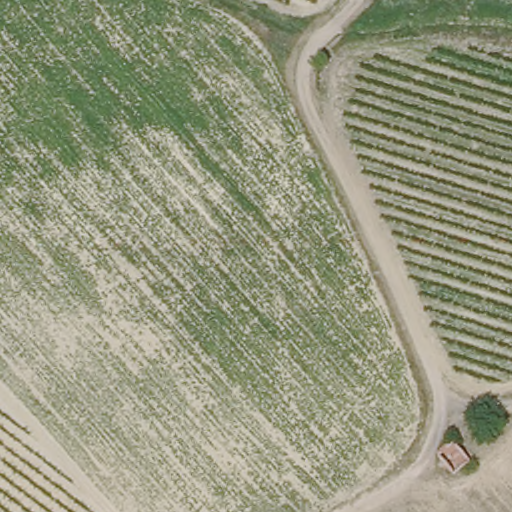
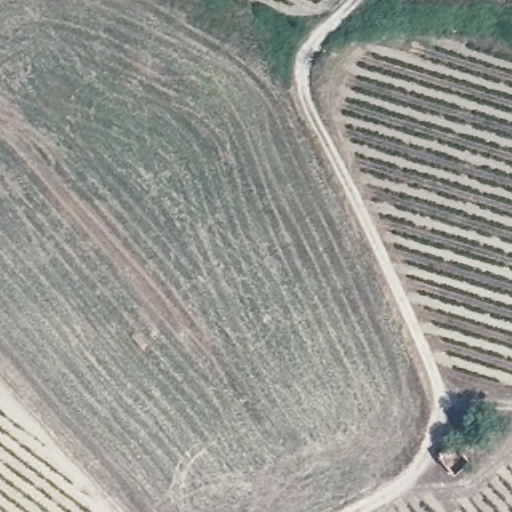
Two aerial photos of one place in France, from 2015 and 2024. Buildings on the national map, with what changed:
unchanged [(454,447),(472,467),(457,482),(438,461),(454,447)]

